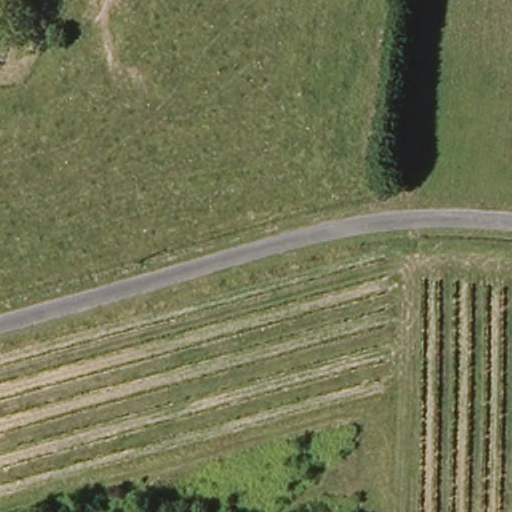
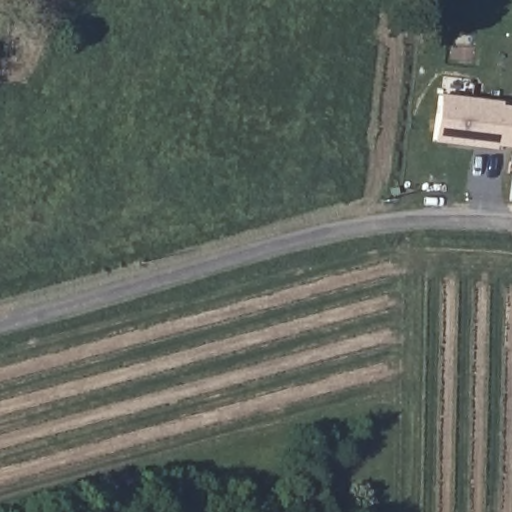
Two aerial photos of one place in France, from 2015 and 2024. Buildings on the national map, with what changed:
new [(501,105),(512,106),(512,148),(497,146),(496,150),(433,142),(438,95),(502,101),(501,105)]

